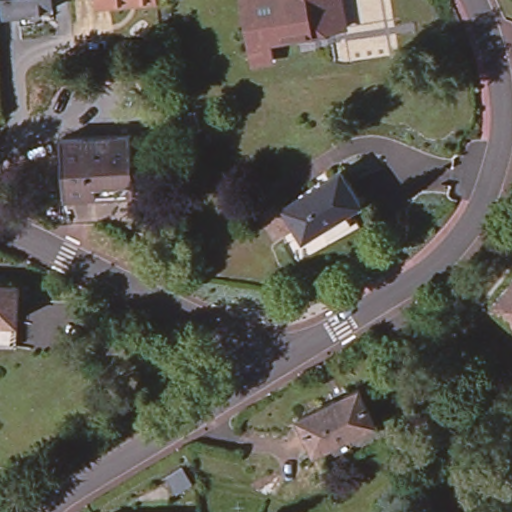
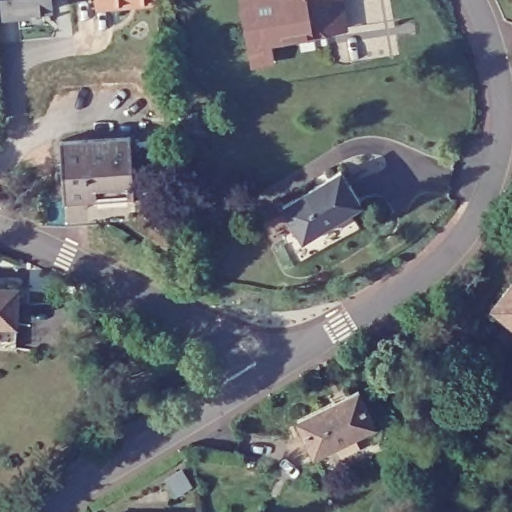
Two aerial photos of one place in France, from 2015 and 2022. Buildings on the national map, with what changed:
unchanged [(22,32),(20,21),(11,21),(3,22),(1,0),(51,0),(52,11),(31,15),(32,30),(22,32)]
unchanged [(154,0),(93,6),(92,0),(154,0)]
unchanged [(348,27),(272,41),(275,60),(257,63),(250,23),(261,20),(258,2),(269,0),(344,0),(348,27)]
unchanged [(195,110),(197,127),(178,128),(177,112),(195,110)]
unchanged [(132,137),(135,188),(85,192),(87,219),(67,220),(61,141),(132,137)]
unchanged [(343,167),(361,198),(306,233),(286,202),(343,167)]
unchanged [(1,332),(0,332),(0,271),(21,271),(20,309),(19,332),(1,332)]
unchanged [(499,313),(491,306),(496,298),(512,279),(512,324),(499,313)]
unchanged [(123,336),(123,353),(106,353),(105,337),(123,336)]
unchanged [(361,386),(378,419),(318,449),(311,435),(301,416),(308,412),(361,386)]
unchanged [(180,472),(187,485),(173,494),(166,480),(180,472)]

